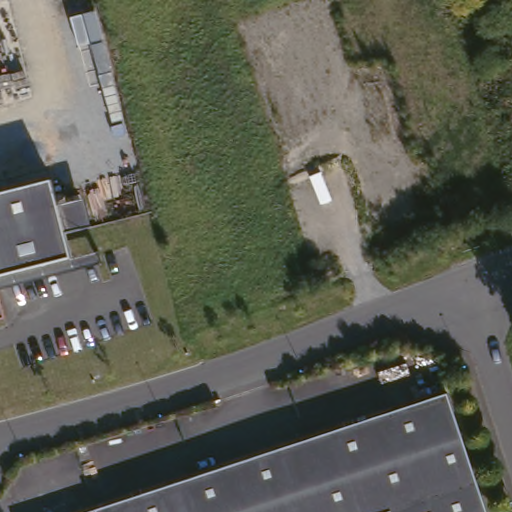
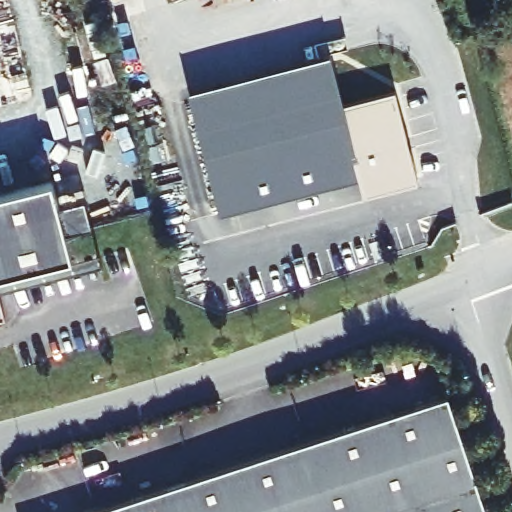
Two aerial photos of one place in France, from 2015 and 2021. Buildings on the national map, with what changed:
new [(333,65),(343,104),(348,120),(205,158),(190,102),(333,65)]
new [(348,120),(343,104),(395,90),(417,171),(362,186),(359,177),(220,214),(205,158),(348,120)]
unchanged [(0,275),(0,194),(48,182),(54,211),(86,201),(93,228),(64,237),(70,257),(0,275)]
unchanged [(3,319),(0,320),(0,297),(3,319)]
unchanged [(458,390),(501,512),(404,512),(402,508),(392,512),(320,512),(295,445),(458,390)]
unchanged [(295,445),(320,512),(108,512),(106,508),(295,445)]
unchanged [(106,508),(108,512),(94,512),(106,508)]

